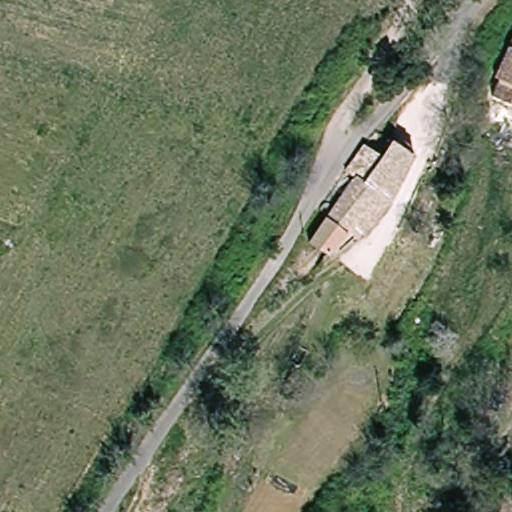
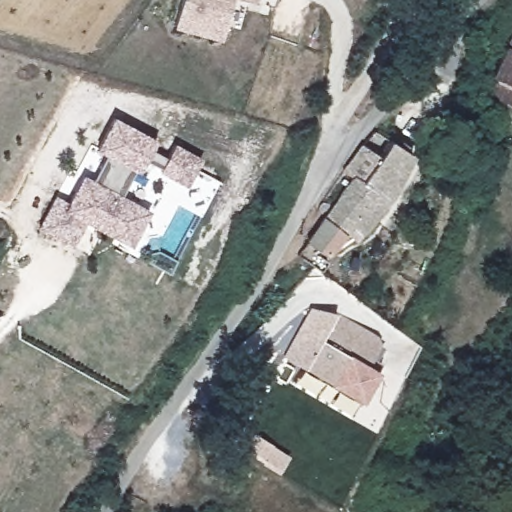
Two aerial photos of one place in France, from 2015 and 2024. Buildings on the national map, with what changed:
new [(221,42),(174,28),(182,0),(232,0),(221,42)]
new [(255,3),(244,0),(255,0),(255,3)]
unchanged [(494,98),(503,78),(498,74),(512,45),(512,106),(494,98)]
new [(68,202),(83,175),(93,180),(105,156),(96,151),(113,117),(158,141),(151,150),(166,158),(175,144),(203,158),(186,187),(160,172),(161,170),(146,161),(138,174),(135,172),(121,195),(151,211),(131,247),(86,223),(72,248),(37,229),(55,196),(68,202)]
unchanged [(317,231),(321,225),(316,219),(328,205),(334,207),(351,179),(346,176),(365,146),(385,156),(397,140),(417,152),(394,193),(351,240),(341,235),(336,244),(317,231)]
new [(381,344),(367,365),(378,371),(360,402),(331,385),(305,370),(321,341),(341,314),(376,336),(381,344)]

